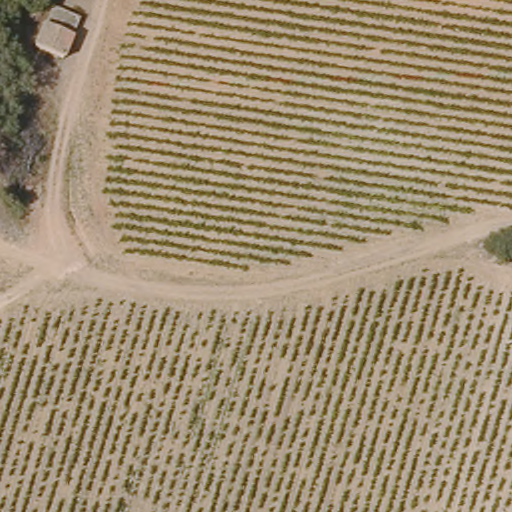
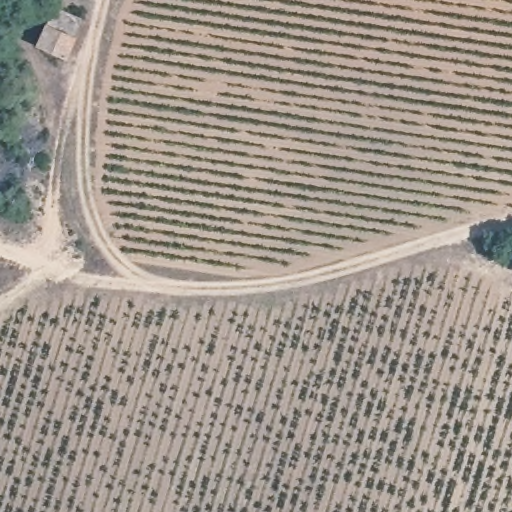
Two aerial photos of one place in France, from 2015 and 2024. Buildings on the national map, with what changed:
unchanged [(54,8),(81,19),(65,59),(38,49),(54,8)]

